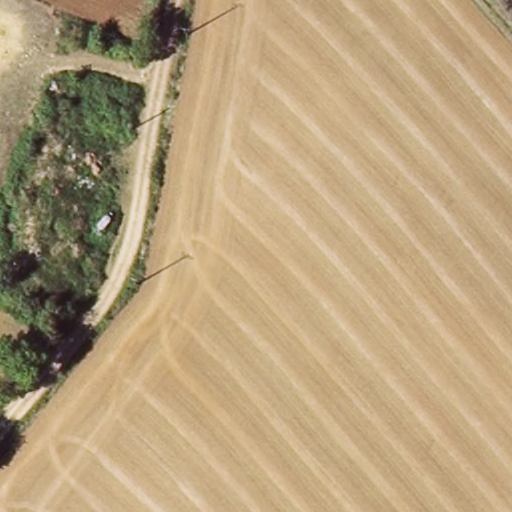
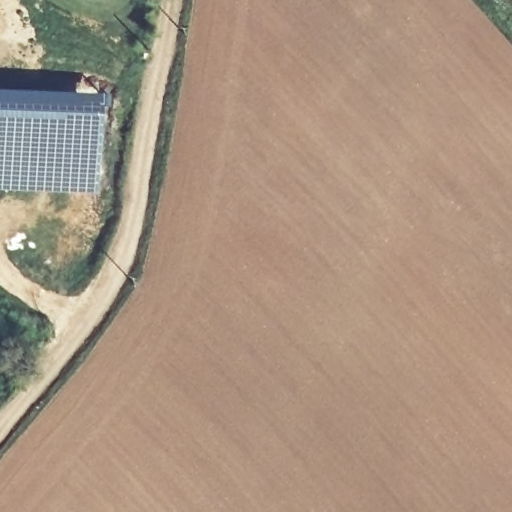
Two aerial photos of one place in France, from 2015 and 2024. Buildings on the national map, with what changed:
new [(102,113),(98,193),(0,189),(0,88),(103,92),(102,113)]

